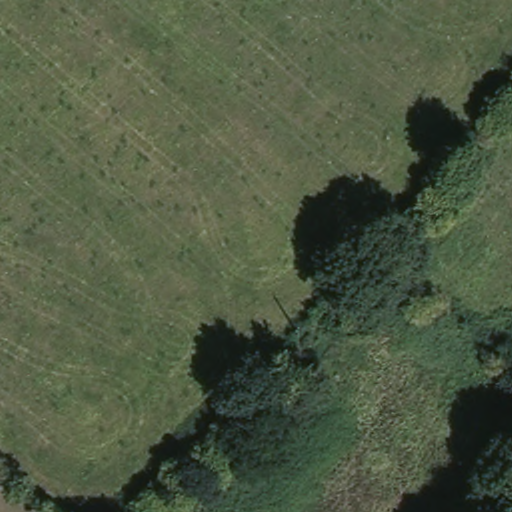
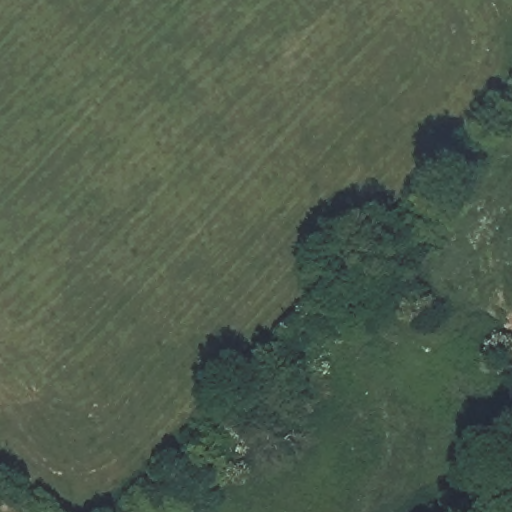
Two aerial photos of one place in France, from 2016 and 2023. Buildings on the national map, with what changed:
[]

